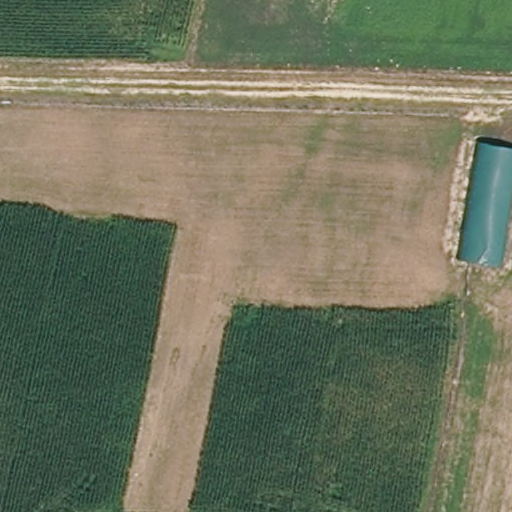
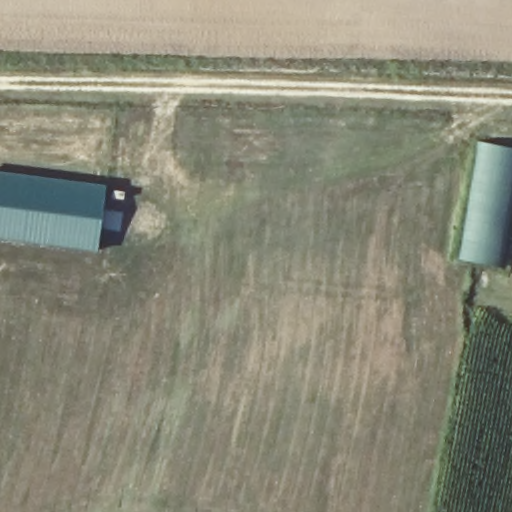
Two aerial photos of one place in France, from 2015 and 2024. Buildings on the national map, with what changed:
unchanged [(512,148),(512,188),(497,266),(460,258),(481,142),(512,148)]
new [(99,251),(0,240),(0,172),(107,186),(99,251)]

